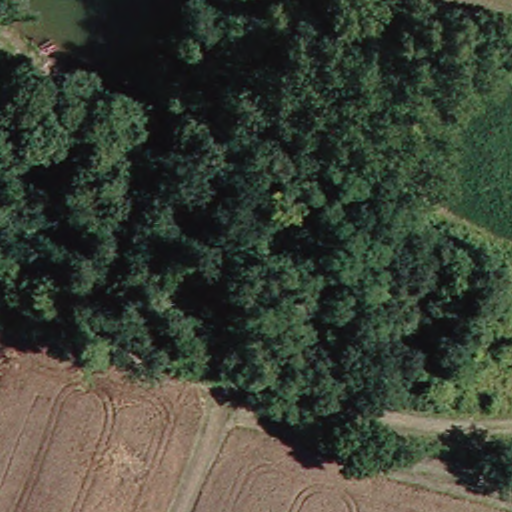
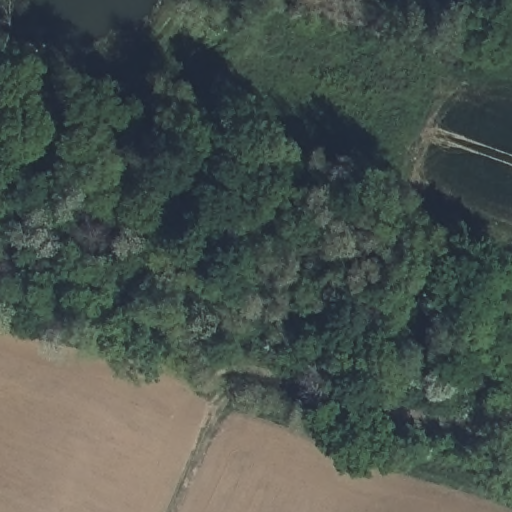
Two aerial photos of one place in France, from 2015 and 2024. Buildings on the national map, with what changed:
[]

